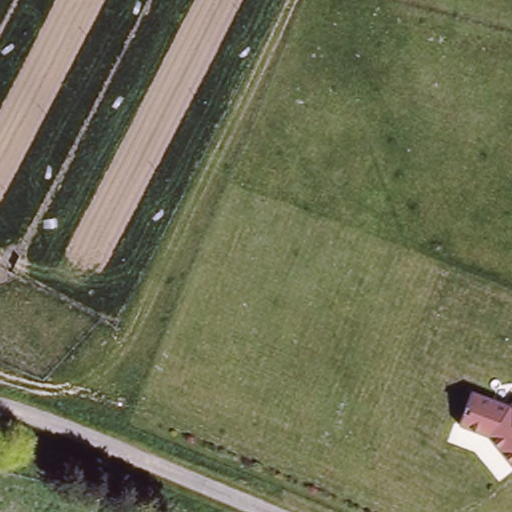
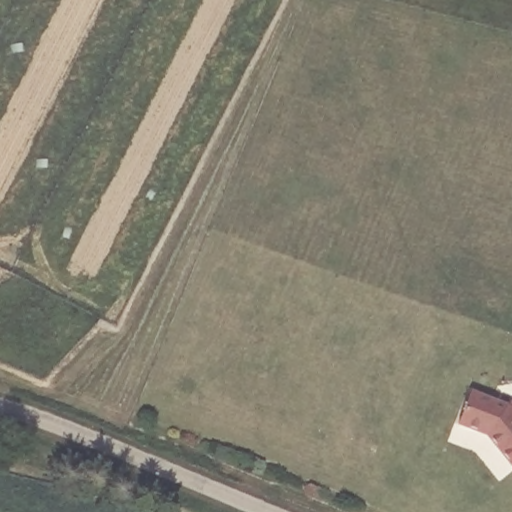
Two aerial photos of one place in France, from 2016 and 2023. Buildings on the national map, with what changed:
unchanged [(455,426),(468,392),(506,407),(512,402),(512,465),(510,467),(485,437),(455,426)]

